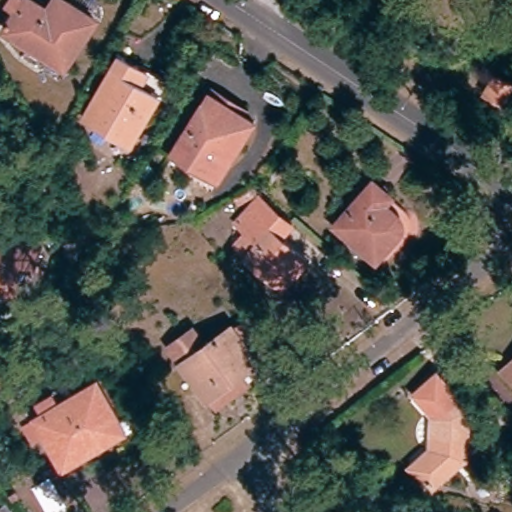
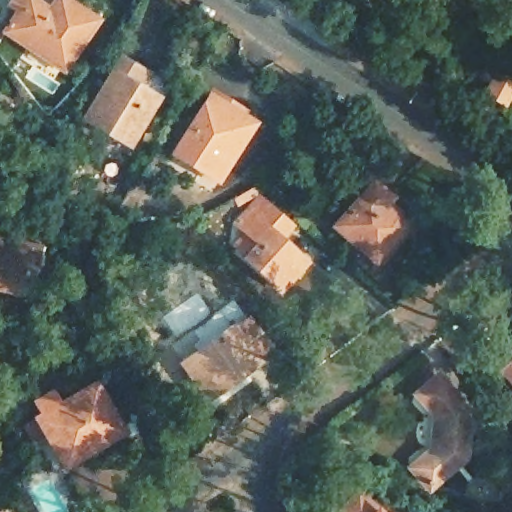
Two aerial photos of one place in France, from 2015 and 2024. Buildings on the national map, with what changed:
unchanged [(96,30),(65,79),(6,41),(9,38),(7,36),(9,33),(11,34),(19,22),(10,16),(17,5),(26,11),(28,8),(43,18),(46,11),(53,15),(59,6),(96,30)]
unchanged [(116,149),(70,124),(103,65),(149,90),(116,149)]
unchanged [(512,85),(512,93),(508,100),(487,88),(494,75),(512,85)]
unchanged [(207,181),(197,174),(162,153),(201,89),(236,111),(233,115),(244,122),(207,181)]
unchanged [(396,239),(371,267),(331,232),(369,189),(389,206),(392,209),(395,211),(397,214),(398,215),(399,217),(401,220),(401,225),(401,227),(401,229),(400,232),(399,234),(397,238),(396,239)]
unchanged [(247,193),(252,202),(228,215),(223,207),(247,193)]
unchanged [(254,250),(234,233),(257,206),(286,231),(273,246),(304,273),(295,284),(290,279),(278,294),(243,264),(254,250)]
unchanged [(35,284),(19,281),(15,297),(0,294),(0,240),(43,249),(35,284)]
unchanged [(209,404),(165,347),(193,325),(205,343),(233,322),(236,325),(248,317),(273,349),(260,359),(263,363),(209,404)]
unchanged [(0,350),(0,342),(3,344),(0,350)]
unchanged [(437,416),(439,416),(421,395),(441,378),(471,411),(468,459),(434,487),(418,469),(437,451),(435,451),(437,416)]
unchanged [(69,471),(51,440),(37,449),(28,433),(100,391),(126,437),(69,471)]
new [(356,488),(378,506),(385,512),(336,512),(356,488)]

